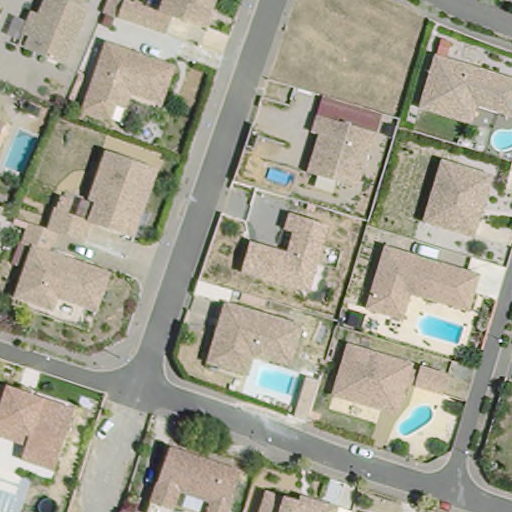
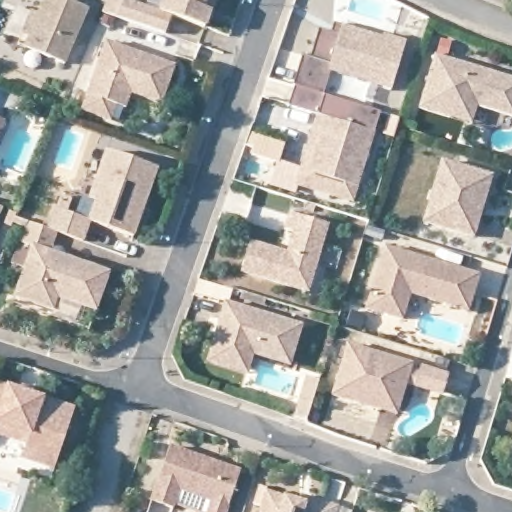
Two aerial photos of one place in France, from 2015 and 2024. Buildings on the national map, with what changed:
unchanged [(34,12),(40,11),(44,0),(85,0),(84,3),(92,8),(69,61),(23,41),(34,12)]
unchanged [(109,0),(140,0),(161,8),(164,0),(219,0),(209,25),(174,15),(167,31),(105,9),(109,0)]
new [(393,92),(331,73),(326,96),(324,96),(293,86),(303,55),(311,57),(319,29),(331,32),(334,24),(384,38),(386,35),(407,41),(393,92)]
unchanged [(108,40),(179,63),(164,102),(135,93),(131,105),(120,102),(111,124),(82,113),(108,40)]
unchanged [(512,75),(512,112),(481,106),(477,123),(422,107),(438,54),(512,75)]
unchanged [(319,134),(311,132),(316,116),(324,96),(381,112),(376,133),(359,189),(307,172),(319,134)]
unchanged [(8,120),(0,136),(0,117),(8,120)]
unchanged [(25,240),(31,221),(50,226),(58,205),(79,212),(84,196),(91,198),(108,148),(162,167),(136,235),(93,224),(88,239),(61,232),(56,250),(113,270),(98,309),(66,299),(58,302),(54,309),(16,295),(35,245),(25,240)]
unchanged [(443,158),(494,173),(476,233),(427,215),(443,158)]
unchanged [(6,208),(0,221),(0,205),(6,208)]
unchanged [(252,239),(289,249),(291,237),(284,235),(288,212),(333,225),(311,293),(243,271),(252,239)]
unchanged [(387,245),(484,273),(473,306),(414,292),(406,317),(369,304),(387,245)]
unchanged [(227,301),(306,322),(294,365),(256,357),(251,373),(212,360),(227,301)]
unchanged [(350,342),(452,372),(445,391),(411,382),(399,415),(333,395),(350,342)]
unchanged [(10,383),(47,395),(78,407),(57,467),(24,458),(29,440),(0,430),(0,380),(10,383)]
unchanged [(243,466),(228,512),(202,512),(191,508),(195,495),(184,490),(178,506),(154,496),(172,443),(243,466)]
unchanged [(286,495),(309,503),(312,496),(341,505),(339,512),(259,512),(264,490),(286,495)]

